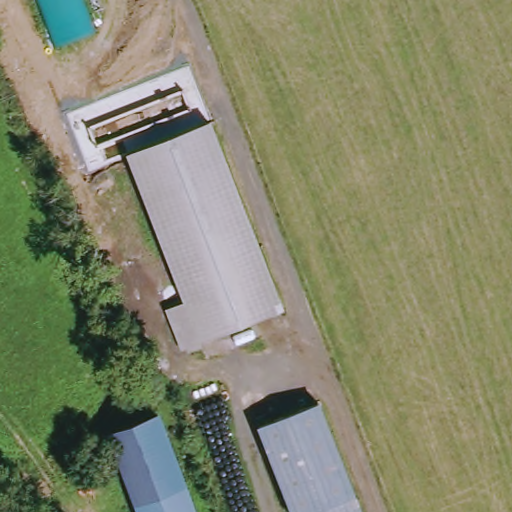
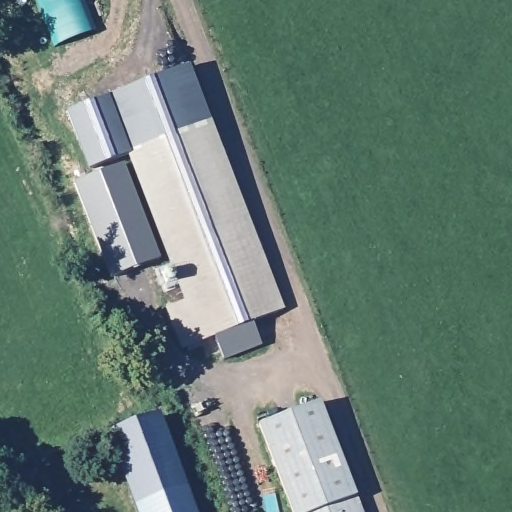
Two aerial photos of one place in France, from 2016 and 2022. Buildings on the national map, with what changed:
unchanged [(102,31),(59,51),(40,0),(90,0),(102,31)]
new [(110,278),(73,186),(90,178),(65,114),(190,66),(213,122),(134,156),(107,166),(110,172),(124,166),(160,258),(110,278)]
unchanged [(210,340),(212,347),(197,351),(195,345),(186,348),(179,326),(198,318),(134,156),(213,122),(287,310),(210,340)]
new [(214,338),(252,323),(262,347),(223,361),(214,338)]
unchanged [(293,512),(261,428),(322,405),(364,512),(293,512)]
unchanged [(116,431),(166,413),(191,486),(143,503),(116,431)]
unchanged [(191,486),(200,512),(146,512),(143,503),(191,486)]

